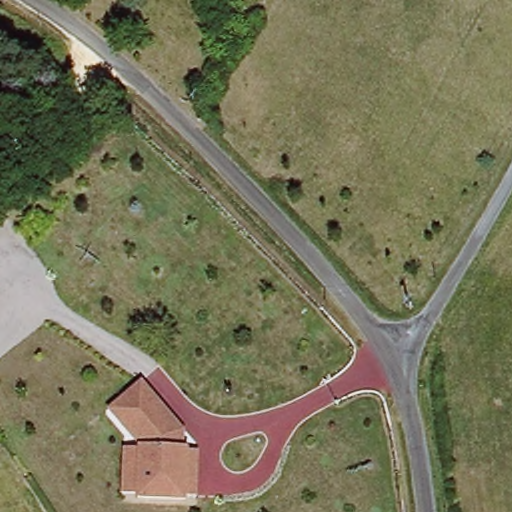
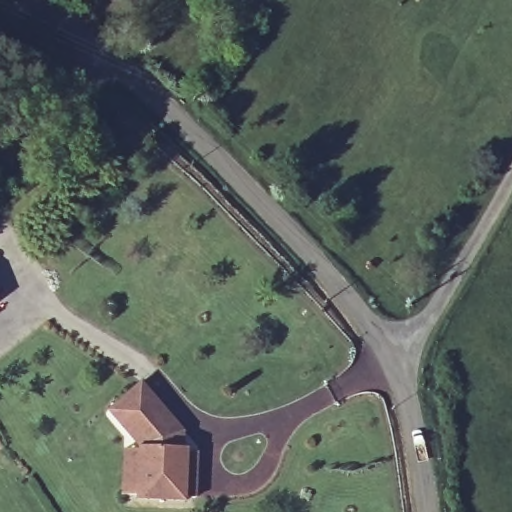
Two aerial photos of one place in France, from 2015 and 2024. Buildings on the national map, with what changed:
unchanged [(113,411),(146,384),(178,420),(188,433),(188,439),(202,439),(200,497),(190,497),(189,501),(140,500),(141,495),(125,495),(127,449),(143,450),(113,411)]

